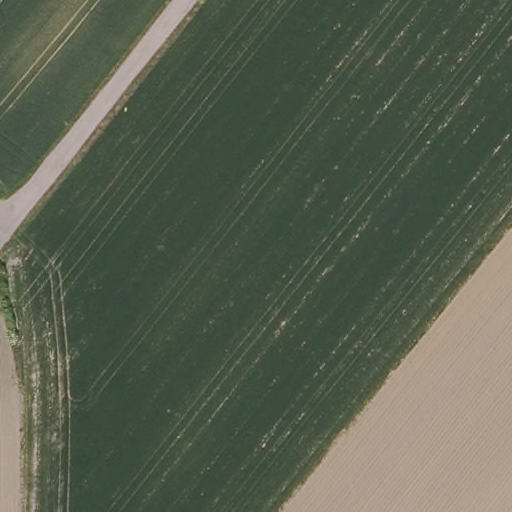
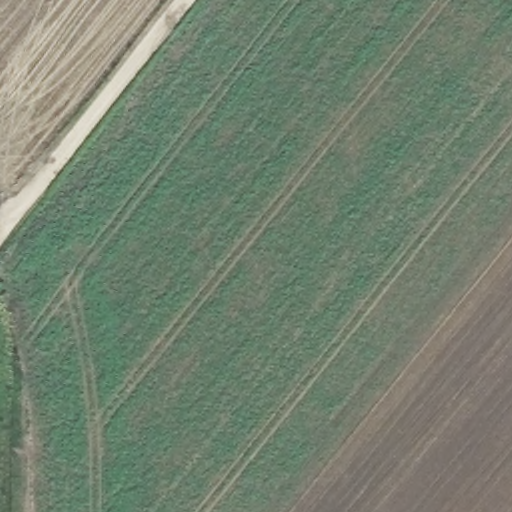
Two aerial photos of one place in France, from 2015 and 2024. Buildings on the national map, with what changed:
[]

